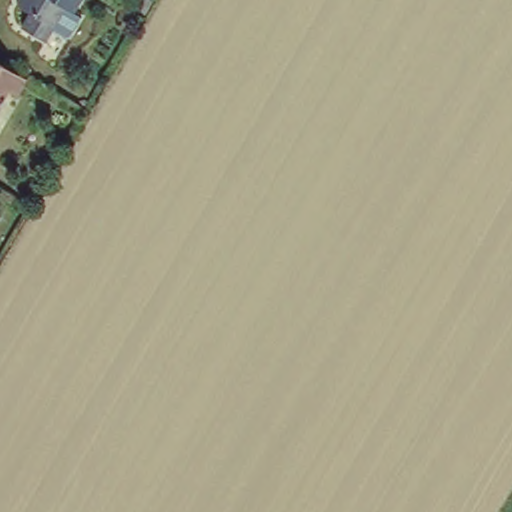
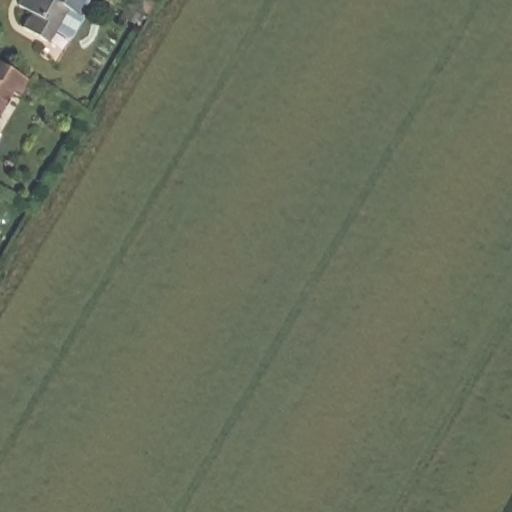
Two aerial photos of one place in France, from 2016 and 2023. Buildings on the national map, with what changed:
unchanged [(66,11),(73,16),(61,36),(56,37),(42,28),(35,41),(10,25),(20,8),(7,0),(73,0),(66,11)]
unchanged [(9,95),(0,90),(0,67),(20,78),(9,95)]

